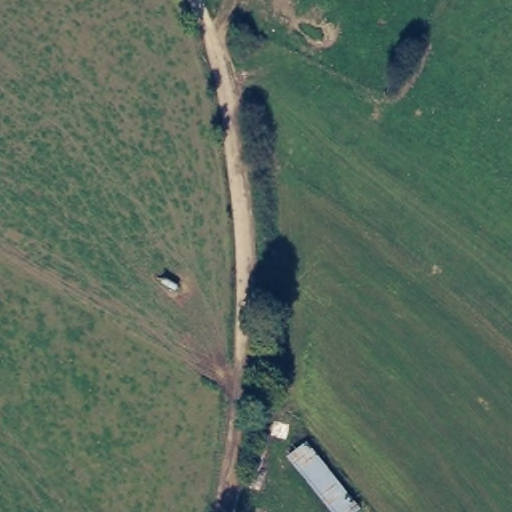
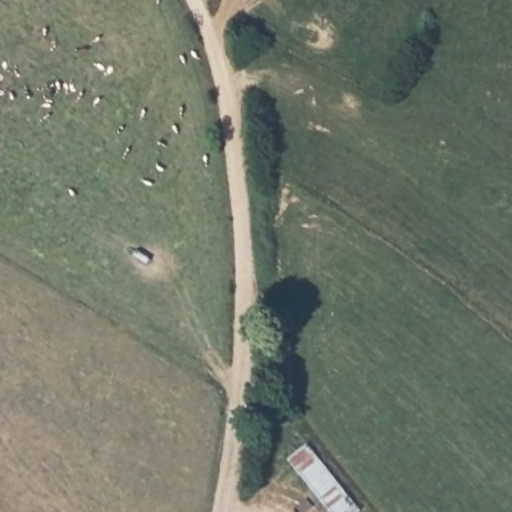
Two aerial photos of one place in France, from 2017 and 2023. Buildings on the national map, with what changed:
unchanged [(286,455),(309,430),(368,502),(356,512),(333,512),(286,455)]

